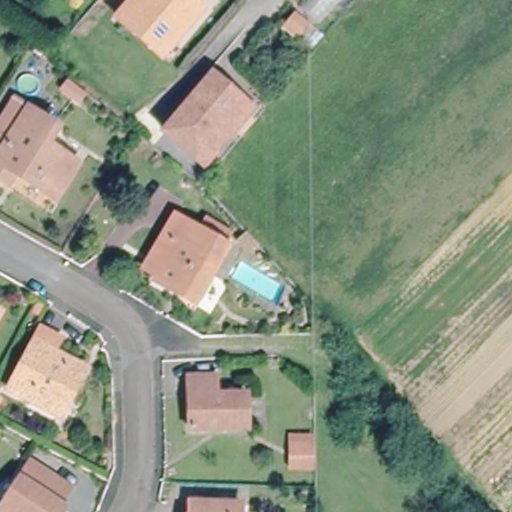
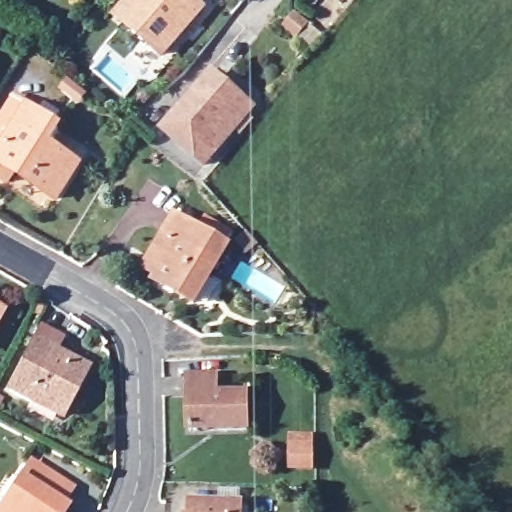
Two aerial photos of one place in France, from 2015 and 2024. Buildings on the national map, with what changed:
unchanged [(202,10),(163,57),(118,20),(134,1),(132,0),(190,0),(202,10)]
unchanged [(165,134),(209,81),(212,77),(252,110),(233,133),(205,167),(165,134)]
unchanged [(59,123),(49,140),(77,158),(56,194),(12,167),(6,178),(0,175),(0,120),(2,117),(15,96),(59,123)]
unchanged [(168,293),(149,284),(152,277),(137,270),(153,238),(164,217),(187,229),(195,216),(222,230),(216,244),(217,244),(191,298),(188,303),(168,293)]
unchanged [(1,314),(0,315),(0,314),(1,314)]
unchanged [(5,391),(38,331),(57,341),(50,353),(81,370),(55,418),(5,391)]
unchanged [(243,428),(186,430),(185,378),(212,376),(213,394),(242,393),(243,428)]
unchanged [(316,434),(315,470),(287,469),(289,432),(316,434)]
unchanged [(0,512),(0,505),(27,465),(64,490),(53,507),(58,510),(57,512),(0,512)]
unchanged [(237,503),(237,512),(185,512),(185,502),(237,503)]

